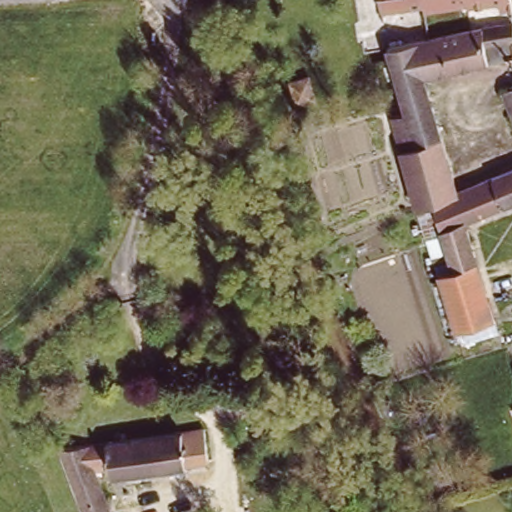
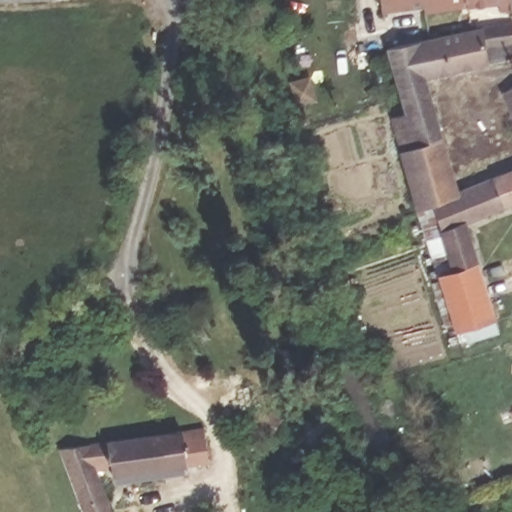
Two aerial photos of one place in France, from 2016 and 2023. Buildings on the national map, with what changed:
unchanged [(497,0),(424,8),(422,1),(381,6),(380,0),(497,0)]
unchanged [(501,0),(512,0),(512,8),(502,8),(501,0)]
unchanged [(457,189),(457,192),(432,201),(418,206),(391,112),(400,109),(405,107),(398,82),(387,43),(427,35),(467,27),(484,24),(485,42),(512,40),(512,56),(425,74),(457,189)]
unchanged [(512,84),(512,108),(504,88),(512,84)]
unchanged [(457,192),(457,189),(512,169),(512,201),(464,220),(477,261),(453,268),(432,201),(457,192)]
unchanged [(437,273),(453,268),(477,261),(494,318),(455,330),(437,273)]
unchanged [(202,430),(203,437),(214,436),(217,460),(110,476),(110,467),(92,470),(105,500),(104,500),(108,512),(83,512),(60,451),(109,444),(174,434),(202,430)]

